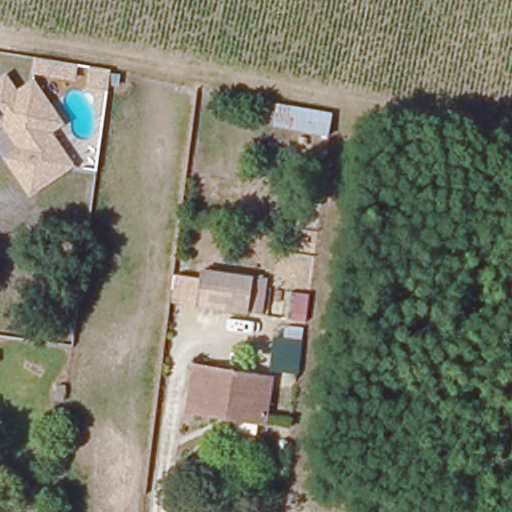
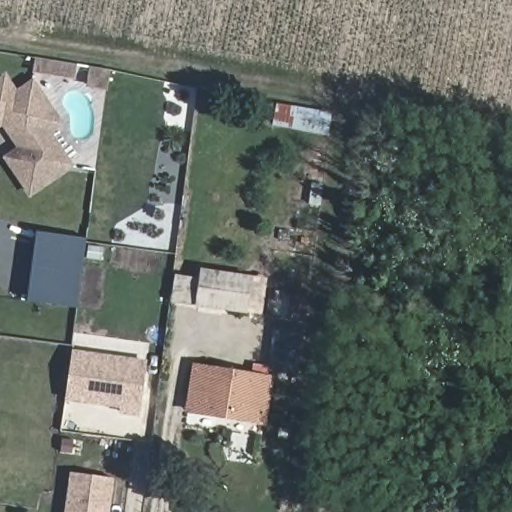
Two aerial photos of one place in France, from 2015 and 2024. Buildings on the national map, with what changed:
unchanged [(50,136),(73,169),(32,197),(9,162),(23,152),(6,126),(0,129),(0,86),(8,81),(19,97),(36,86),(63,127),(50,136)]
unchanged [(332,115),(328,137),(256,124),(259,104),(332,115)]
new [(88,239),(80,302),(35,296),(41,234),(88,239)]
unchanged [(259,317),(245,314),(196,305),(202,271),(252,279),(265,282),(259,317)]
unchanged [(302,330),(296,376),(269,373),(273,327),(302,330)]
new [(68,396),(74,351),(149,361),(142,412),(122,410),(123,404),(68,396)]
unchanged [(191,406),(195,371),(270,384),(264,427),(227,421),(190,415),(191,406)]
new [(68,512),(74,472),(113,478),(109,512),(68,512)]

